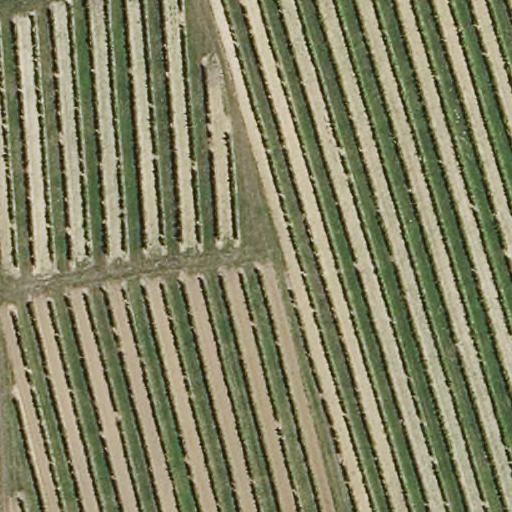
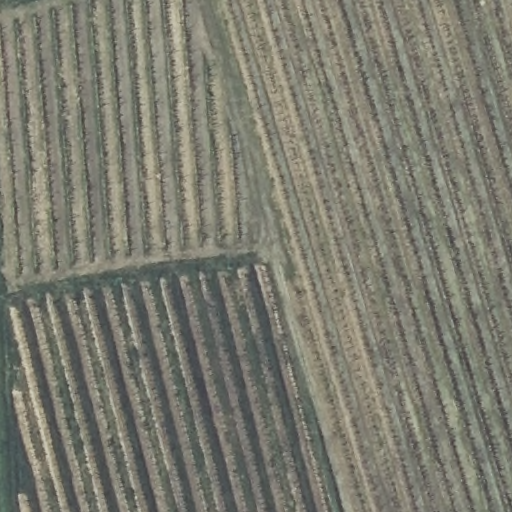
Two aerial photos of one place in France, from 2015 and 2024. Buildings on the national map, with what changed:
[]

